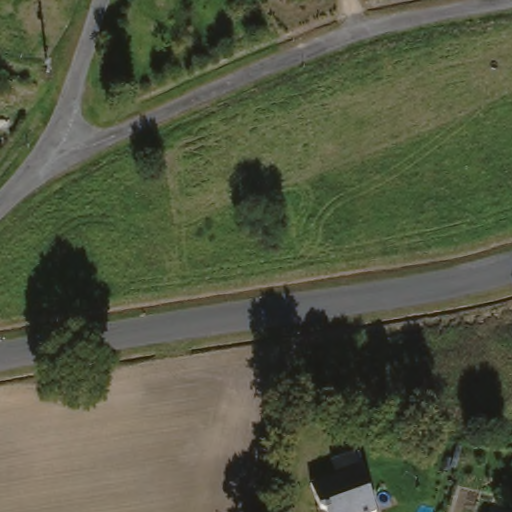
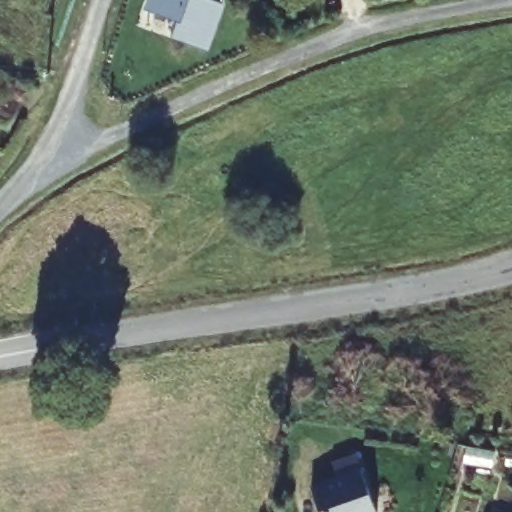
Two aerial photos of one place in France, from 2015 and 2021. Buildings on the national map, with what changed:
new [(152,0),(218,0),(226,3),(210,45),(176,32),(182,15),(150,3),(152,0)]
unchanged [(330,512),(318,485),(350,470),(348,463),(360,457),(378,511),(377,512),(330,512)]

